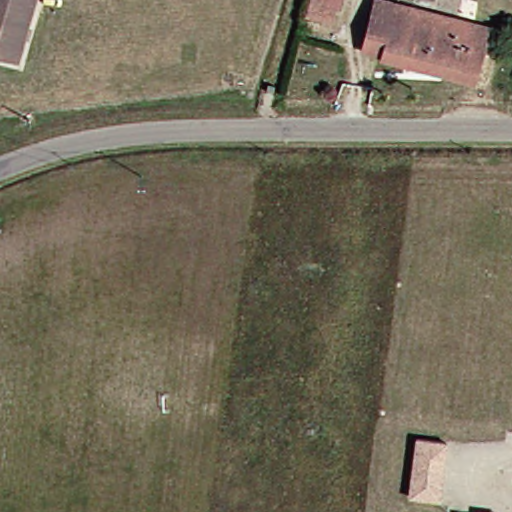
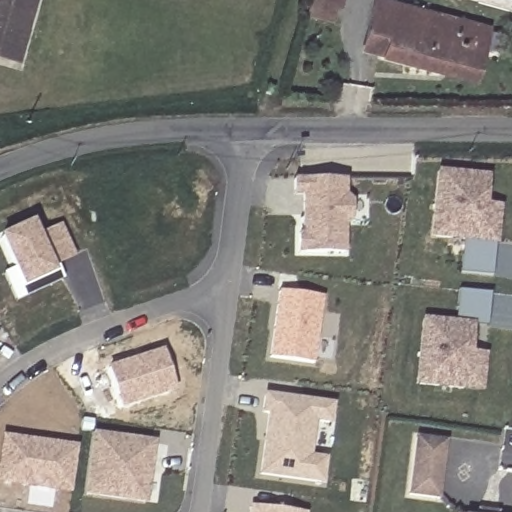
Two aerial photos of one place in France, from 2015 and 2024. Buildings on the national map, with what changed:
unchanged [(0,52),(0,0),(26,0),(12,55),(0,52)]
unchanged [(356,49),(368,0),(381,0),(476,24),(471,46),(464,75),(451,72),(356,49)]
new [(434,173),(483,178),(480,208),(477,207),(474,242),(460,241),(427,237),(434,173)]
new [(346,195),(354,202),(352,226),(345,226),(346,256),(298,256),(297,234),(302,234),(302,197),(294,197),(294,179),(347,180),(346,195)]
new [(460,241),(474,242),(477,207),(480,208),(495,209),(490,259),(488,277),(456,274),(458,256),(460,241)]
new [(57,266),(62,279),(25,296),(20,288),(0,244),(0,236),(31,222),(37,236),(59,225),(74,258),(57,266)]
new [(313,362),(269,357),(277,291),(323,297),(313,362)]
new [(462,391),(413,386),(419,322),(451,325),(453,310),(454,292),(486,295),(485,312),(483,327),(468,327),(465,356),(480,357),(476,392),(462,391)]
new [(175,391),(121,410),(107,367),(161,350),(175,391)]
new [(330,426),(314,422),(310,456),(327,458),(323,485),(258,475),(267,416),(261,415),(263,394),(335,403),(330,426)]
new [(69,495),(0,484),(0,437),(76,446),(69,495)]
new [(94,437),(153,445),(145,503),(86,495),(94,437)]
unchanged [(446,443),(438,500),(409,496),(416,438),(446,443)]
new [(292,512),(247,512),(248,506),(292,512)]

